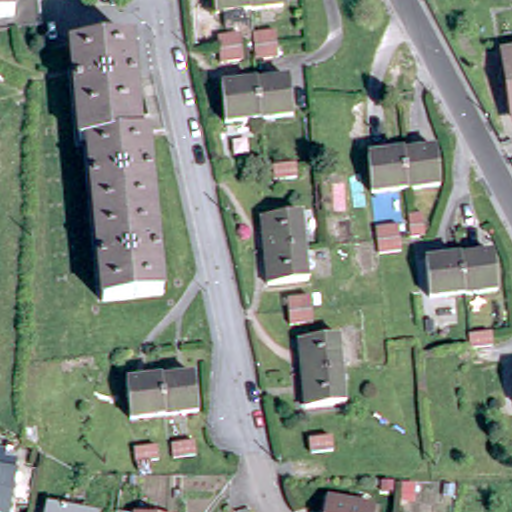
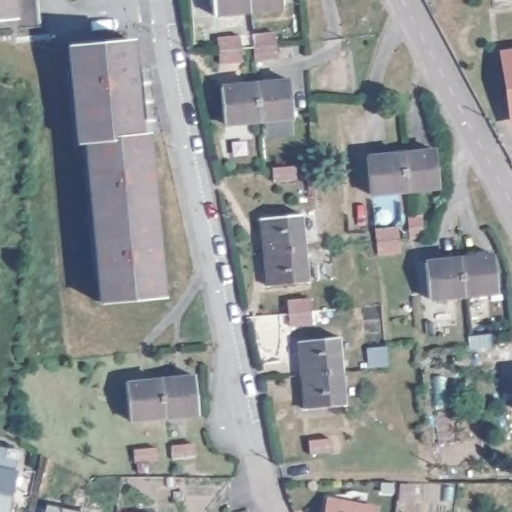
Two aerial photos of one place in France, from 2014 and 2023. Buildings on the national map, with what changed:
unchanged [(0,15),(0,0),(31,0),(34,25),(9,27),(7,14),(0,15)]
unchanged [(213,0),(247,0),(249,12),(215,16),(213,0)]
unchanged [(247,0),(281,0),(282,9),(249,12),(247,0)]
unchanged [(254,61),(252,49),(251,36),(274,34),(275,47),(277,59),(254,61)]
unchanged [(218,52),(217,39),(239,37),(240,50),(242,62),(220,65),(218,52)]
unchanged [(88,141),(78,141),(70,47),(130,41),(140,136),(147,136),(160,296),(102,302),(88,141)]
unchanged [(512,54),(512,105),(505,56),(512,54)]
unchanged [(256,79),(290,76),(294,112),(260,116),(256,79)]
unchanged [(222,82),(256,79),(260,116),(225,120),(222,82)]
unchanged [(401,154),(435,151),(439,188),(404,191),(401,154)]
unchanged [(370,194),(368,157),(401,154),(404,191),(370,194)]
unchanged [(295,167),(295,181),(274,183),(272,170),(295,167)]
unchanged [(305,244),(264,248),(260,216),(302,210),(305,244)]
unchanged [(420,217),(422,239),(409,241),(407,218),(420,217)]
unchanged [(377,256),(375,244),(374,231),(397,228),(399,242),(400,254),(377,256)]
unchanged [(309,277),(267,282),(264,248),(305,244),(309,277)]
unchanged [(495,290),(462,292),(459,256),(492,252),(495,290)]
unchanged [(429,296),(425,259),(459,256),(462,292),(429,296)]
unchanged [(289,326),(288,312),(287,299),(310,297),(310,310),(312,323),(289,326)]
unchanged [(341,367),(300,371),(296,337),(338,333),(341,367)]
unchanged [(468,351),(467,338),(490,336),(492,348),(468,351)]
unchanged [(345,400),(303,404),(300,371),(341,367),(345,400)]
unchanged [(164,375),(199,372),(202,407),(167,411),(164,375)]
unchanged [(134,415),(130,378),(164,375),(167,411),(134,415)]
unchanged [(334,452),(310,454),(308,440),(332,437),(334,452)]
unchanged [(194,444),(195,458),(172,460),(170,446),(194,444)]
unchanged [(157,462),(134,463),(132,450),(155,447),(157,462)]
unchanged [(12,471),(4,512),(0,511),(0,468),(12,471)]
unchanged [(372,500),(369,512),(324,512),(328,492),(372,500)]
unchanged [(76,512),(40,512),(42,505),(76,512)]

